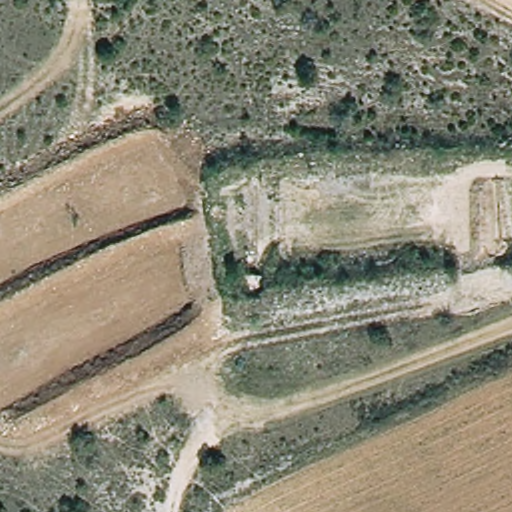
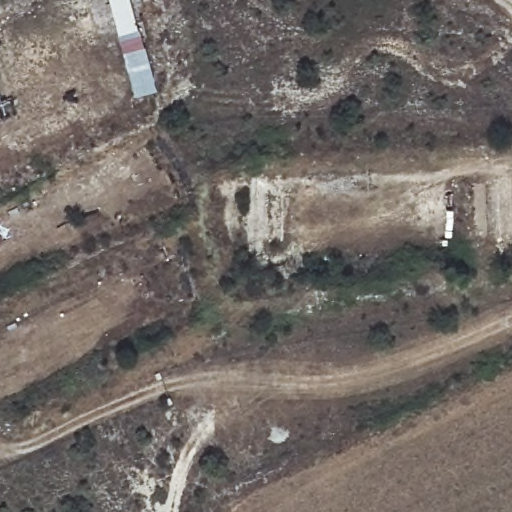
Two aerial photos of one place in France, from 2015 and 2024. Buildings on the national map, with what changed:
new [(134,96),(109,0),(130,0),(157,90),(134,96)]

